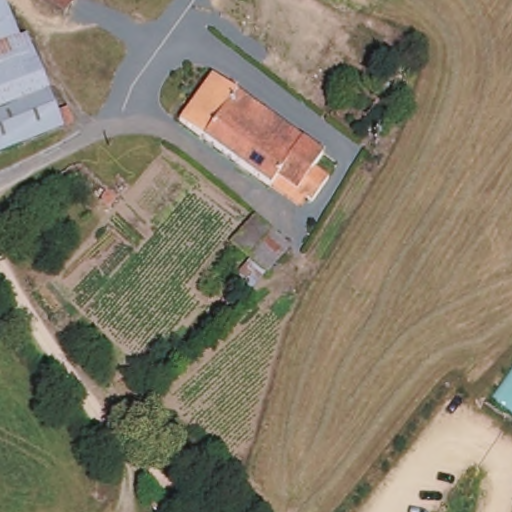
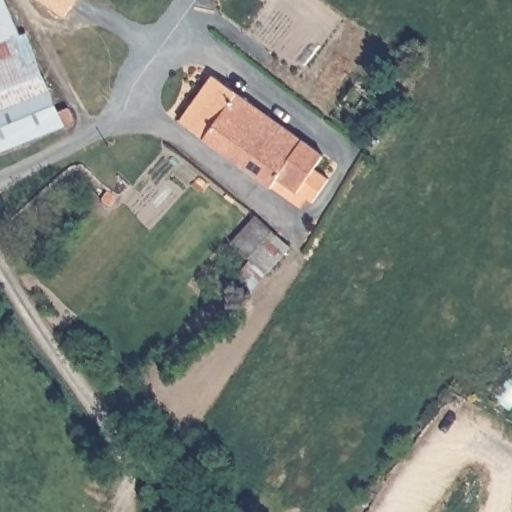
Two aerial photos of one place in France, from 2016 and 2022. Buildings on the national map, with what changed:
unchanged [(0,0),(1,0),(2,0),(17,37),(24,35),(62,127),(0,154),(0,0)]
unchanged [(37,0),(77,0),(64,20),(37,0)]
unchanged [(273,120),(241,169),(177,122),(210,75),(273,120)]
unchanged [(373,82),(399,102),(386,118),(361,97),(373,82)]
unchanged [(269,189),(241,169),(273,120),(321,155),(313,166),(329,178),(310,205),(303,200),(296,209),(269,189)]
unchanged [(265,277),(248,263),(244,260),(227,246),(249,221),(266,234),(271,238),(286,251),(265,277)]

